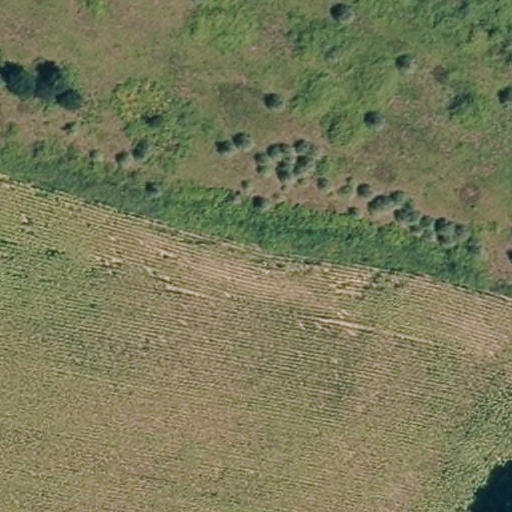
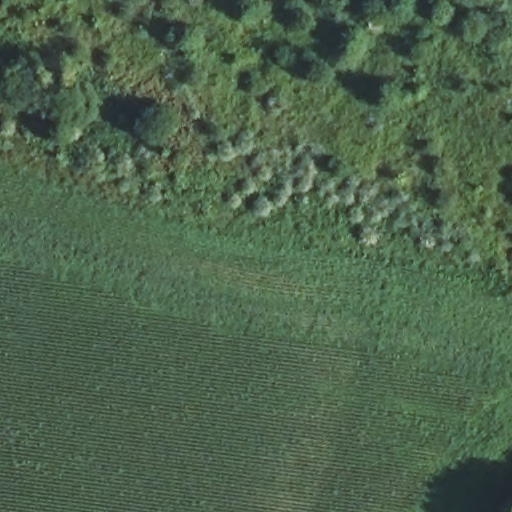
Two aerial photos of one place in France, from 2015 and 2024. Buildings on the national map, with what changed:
[]

